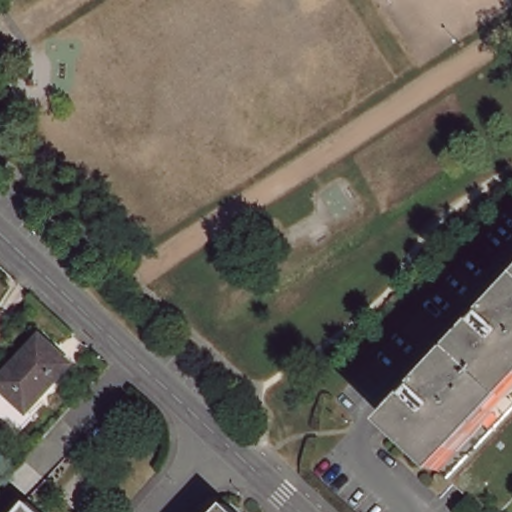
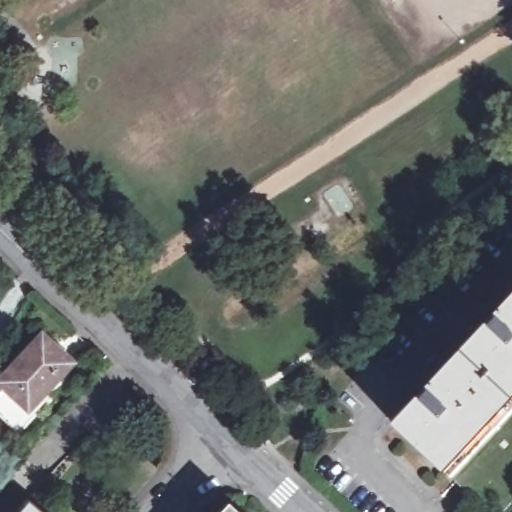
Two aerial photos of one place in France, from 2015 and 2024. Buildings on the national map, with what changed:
unchanged [(512,406),(452,470),(397,425),(512,299),(512,406)]
unchanged [(43,335),(55,347),(72,363),(28,410),(0,383),(0,380),(35,344),(43,335)]
unchanged [(28,410),(31,413),(16,430),(0,415),(0,383),(28,410)]
unchanged [(41,506),(48,512),(36,512),(41,506)]

